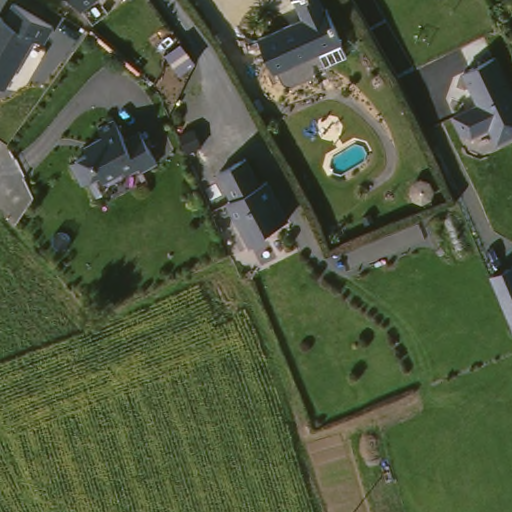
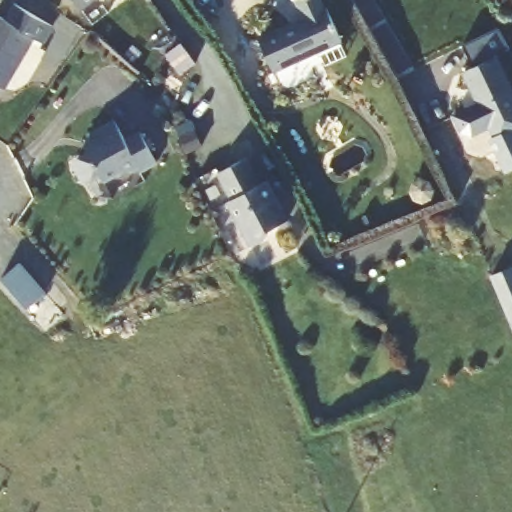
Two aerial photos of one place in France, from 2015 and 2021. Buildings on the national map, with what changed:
unchanged [(88,9),(81,0),(99,0),(88,9)]
unchanged [(329,72),(322,57),(277,78),(262,45),(307,25),(298,5),(308,0),(322,0),(329,17),(331,16),(346,47),(344,48),(350,62),(329,72)]
unchanged [(53,28),(43,45),(34,40),(4,90),(0,87),(0,17),(5,21),(15,5),(53,28)]
unchanged [(175,71),(161,53),(175,42),(189,60),(175,71)]
unchanged [(512,100),(512,136),(505,139),(503,134),(491,140),(485,127),(467,136),(457,132),(450,116),(475,105),(461,72),(494,59),(512,100)]
unchanged [(161,167),(145,176),(143,171),(132,177),(126,175),(107,185),(103,177),(92,184),(85,182),(78,169),(80,162),(92,156),(89,149),(95,146),(106,140),(102,132),(119,124),(129,144),(144,136),(161,167)]
unchanged [(244,160),(258,186),(265,182),(274,199),(271,201),(277,212),(280,211),(286,222),(266,232),(269,237),(264,240),(250,247),(226,203),(231,201),(217,174),(244,160)]
new [(42,294),(24,311),(0,284),(0,278),(15,264),(42,294)]
unchanged [(512,267),(512,332),(489,276),(512,267)]

